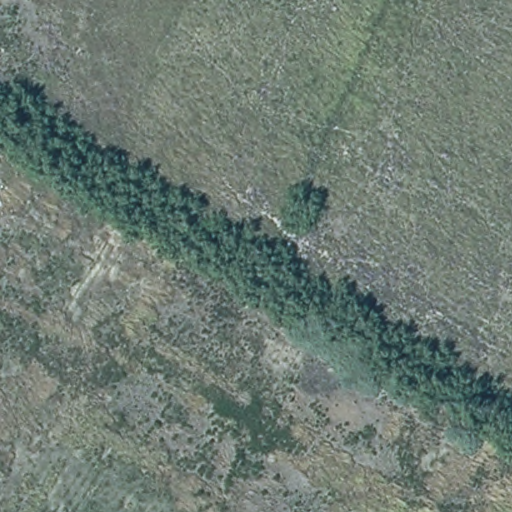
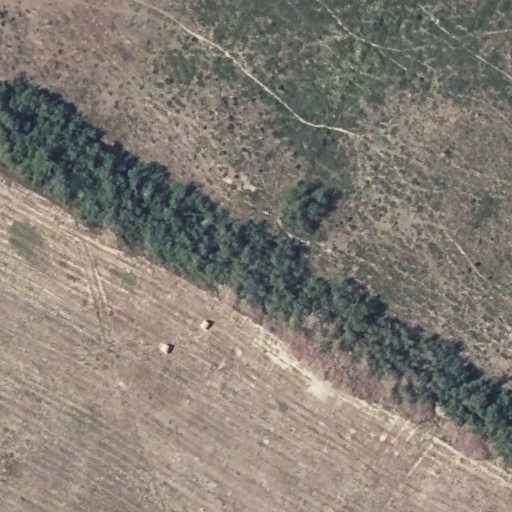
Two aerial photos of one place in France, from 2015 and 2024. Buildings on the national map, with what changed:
[]

